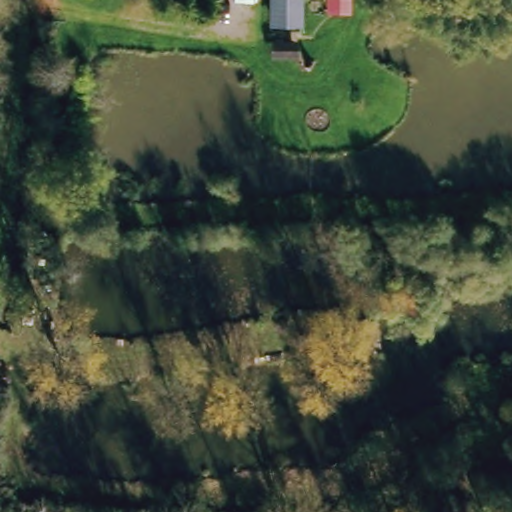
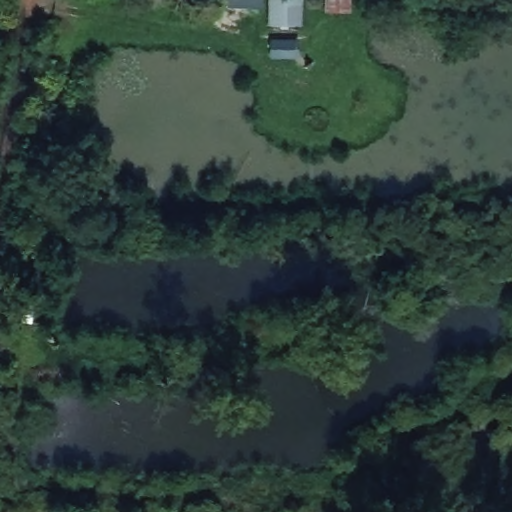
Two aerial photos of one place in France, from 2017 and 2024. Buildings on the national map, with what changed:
unchanged [(266,25),(268,0),(300,0),(299,26),(266,25)]

